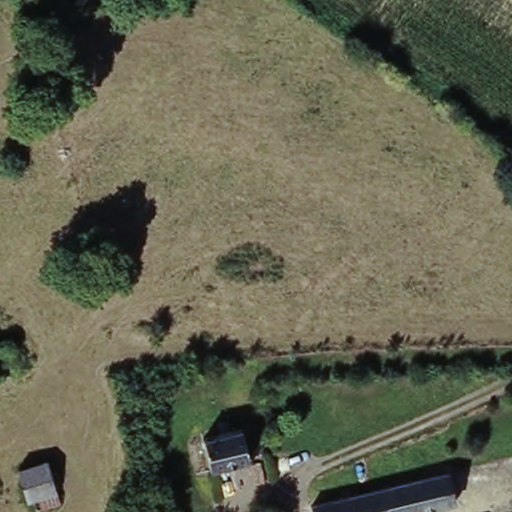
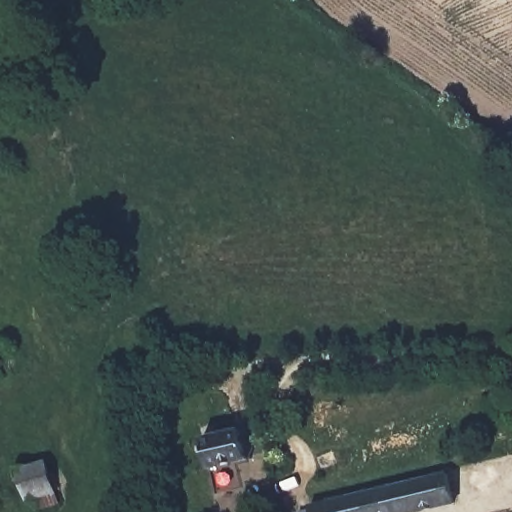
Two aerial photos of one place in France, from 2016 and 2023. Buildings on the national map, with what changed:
unchanged [(69,340),(73,359),(60,361),(56,343),(69,340)]
unchanged [(258,429),(264,454),(246,459),(248,466),(210,474),(202,444),(258,429)]
unchanged [(59,505),(41,512),(36,512),(35,504),(29,504),(20,470),(47,464),(59,505)]
unchanged [(459,508),(443,512),(315,512),(315,509),(451,475),(459,508)]

